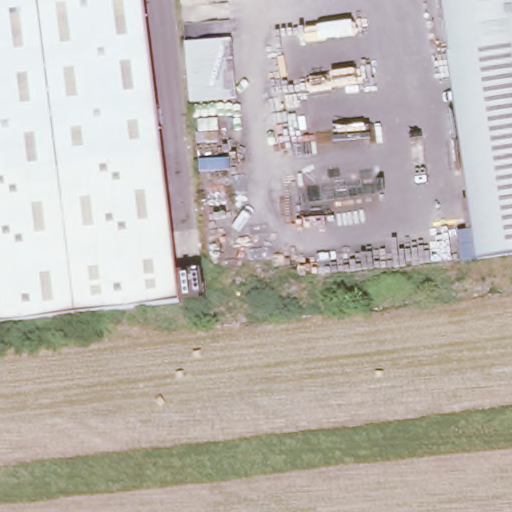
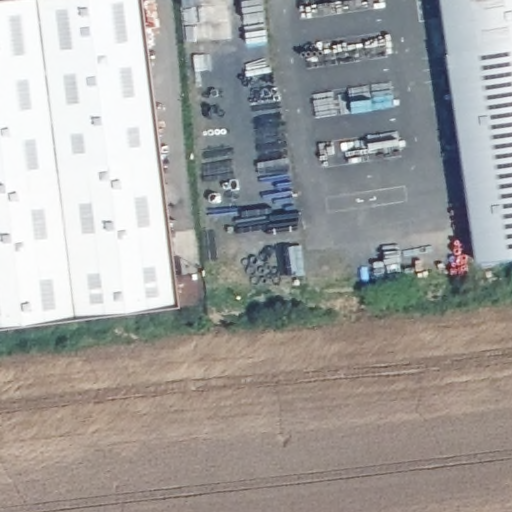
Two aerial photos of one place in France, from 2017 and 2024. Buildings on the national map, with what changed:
unchanged [(0,322),(0,0),(144,0),(183,298),(0,322)]
unchanged [(441,0),(512,0),(512,248),(475,253),(441,0)]

